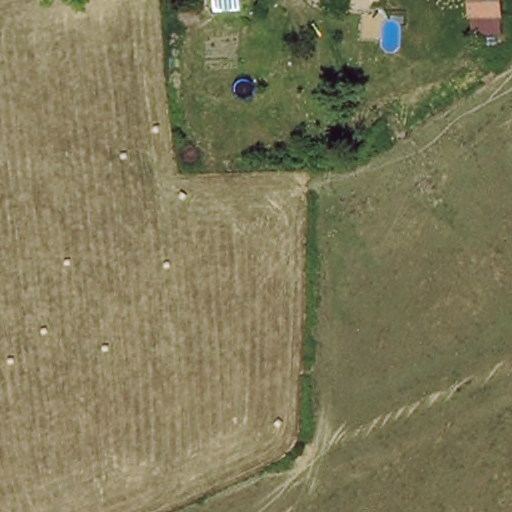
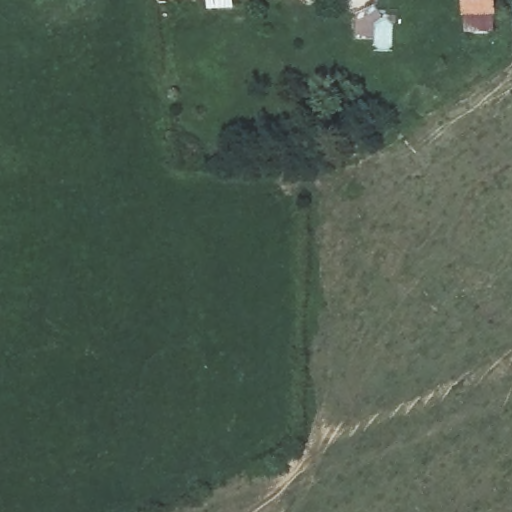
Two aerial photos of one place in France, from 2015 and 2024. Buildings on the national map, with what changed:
unchanged [(164,4),(164,0),(198,0),(164,4)]
unchanged [(469,24),(469,0),(499,0),(498,26),(494,28),(469,24)]

